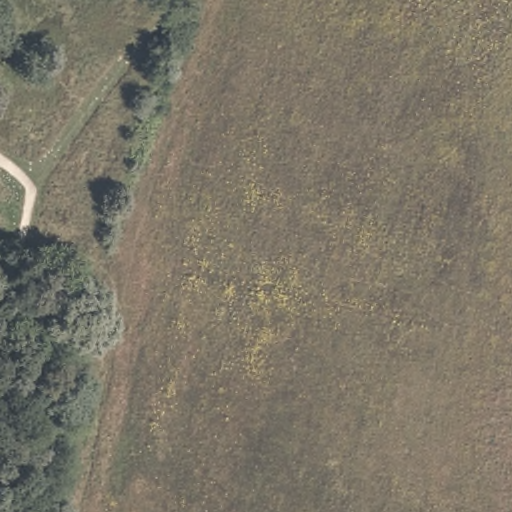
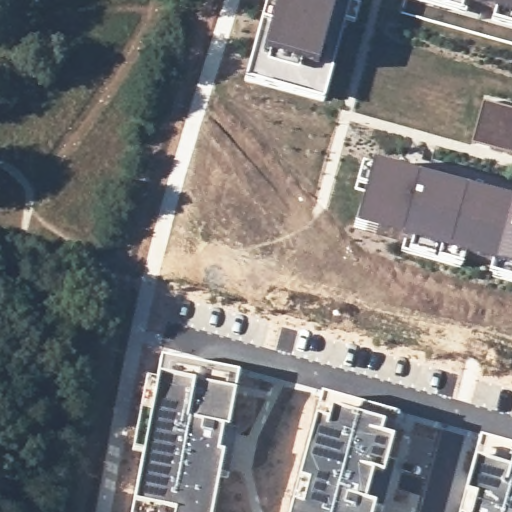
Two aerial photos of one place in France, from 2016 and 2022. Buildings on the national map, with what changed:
new [(245,81),(267,0),(351,0),(323,102),(245,81)]
new [(464,18),(404,1),(404,0),(512,0),(512,30),(493,25),(495,15),(467,8),(464,18)]
new [(371,166),(512,204),(512,271),(496,267),(462,258),(460,267),(402,251),(405,242),(355,228),(371,166)]
new [(512,271),(512,280),(493,275),(496,267),(512,271)]
new [(137,457),(125,455),(141,372),(155,375),(156,362),(236,376),(226,427),(238,430),(226,479),(219,477),(211,512),(127,512),(137,457)]
new [(315,397),(390,418),(378,465),(388,468),(381,496),(361,492),(357,509),(342,505),(340,512),(342,512),(282,512),(315,397)]
new [(512,449),(512,512),(456,512),(475,439),(512,449)]

